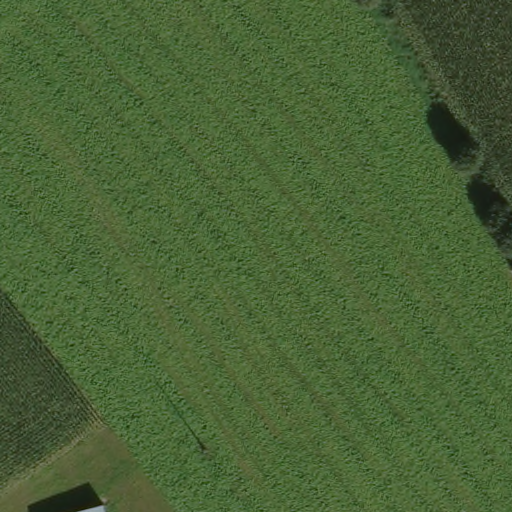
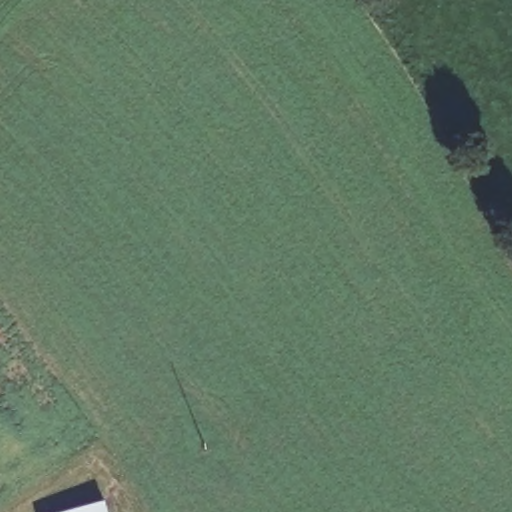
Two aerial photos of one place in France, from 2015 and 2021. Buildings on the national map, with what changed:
unchanged [(58,512),(110,498),(115,512),(58,512)]

